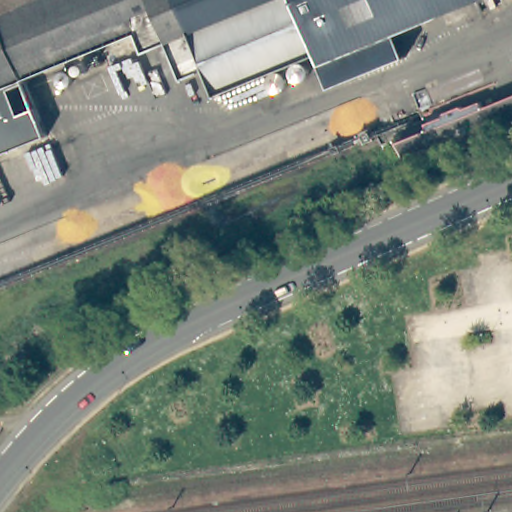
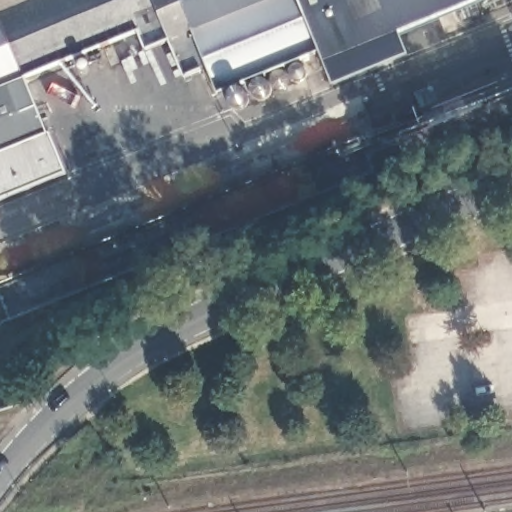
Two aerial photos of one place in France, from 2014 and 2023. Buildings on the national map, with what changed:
unchanged [(397,32),(323,63),(319,52),(219,93),(207,66),(185,76),(169,41),(146,49),(139,30),(24,77),(48,135),(0,153),(0,0),(476,0),(397,32)]
unchanged [(397,32),(407,56),(333,86),(323,63),(397,32)]
unchanged [(468,157),(462,144),(401,169),(390,141),(431,125),(512,92),(512,139),(468,157)]
new [(50,134),(65,173),(0,200),(0,153),(48,135),(50,134)]

